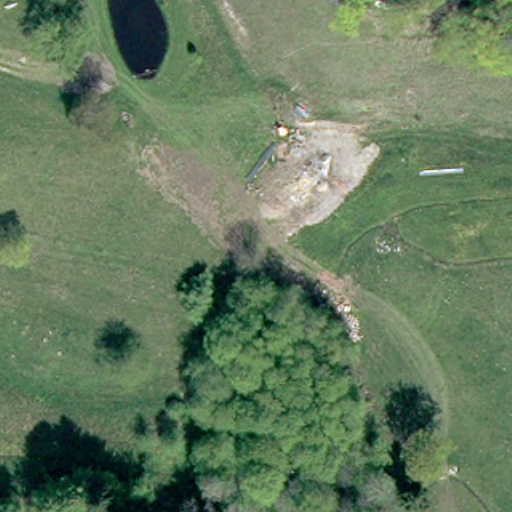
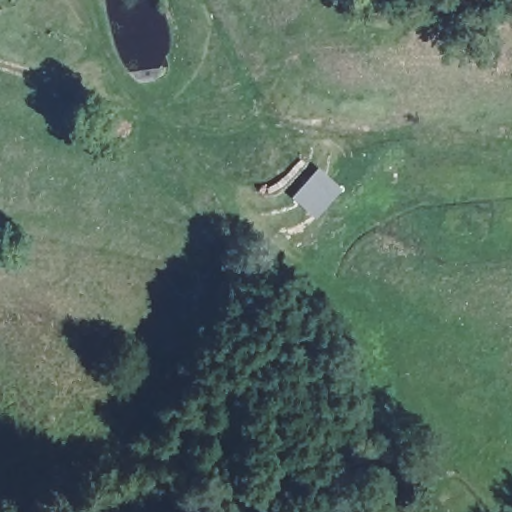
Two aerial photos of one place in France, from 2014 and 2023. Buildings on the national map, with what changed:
new [(291,197),(318,166),(343,187),(315,218),(291,197)]

